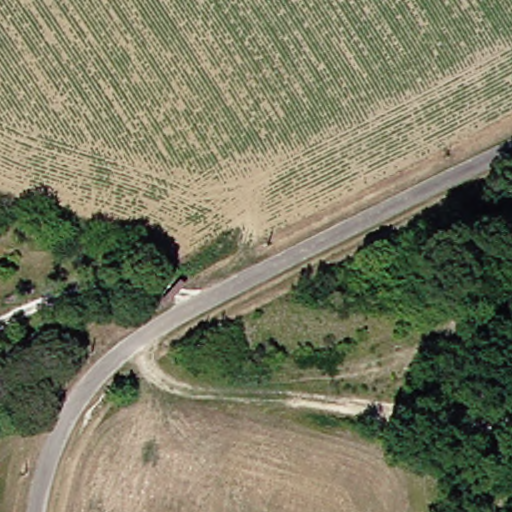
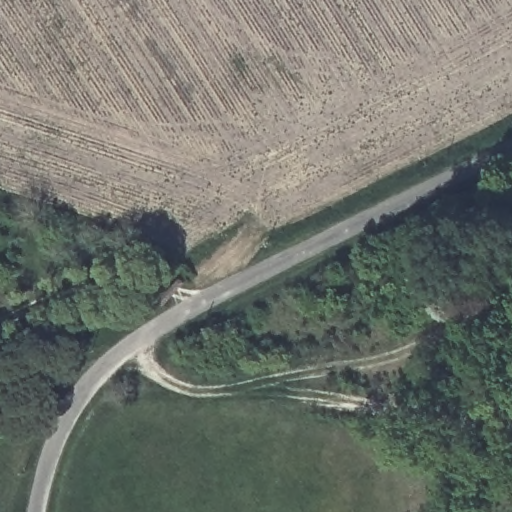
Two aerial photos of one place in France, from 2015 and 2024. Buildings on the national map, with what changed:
[]

